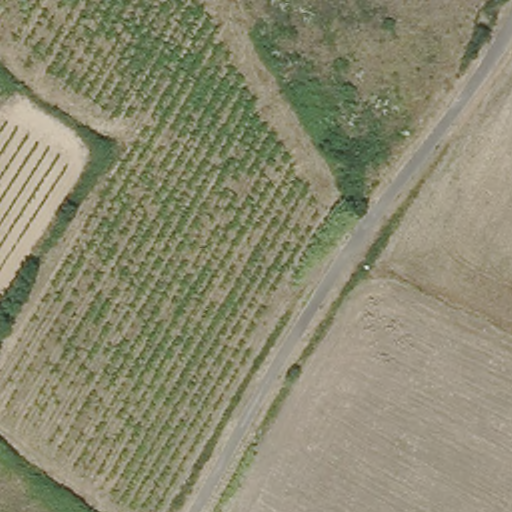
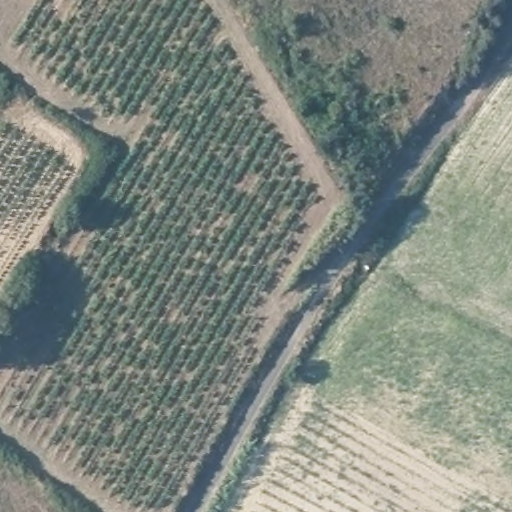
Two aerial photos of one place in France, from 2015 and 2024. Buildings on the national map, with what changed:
[]

